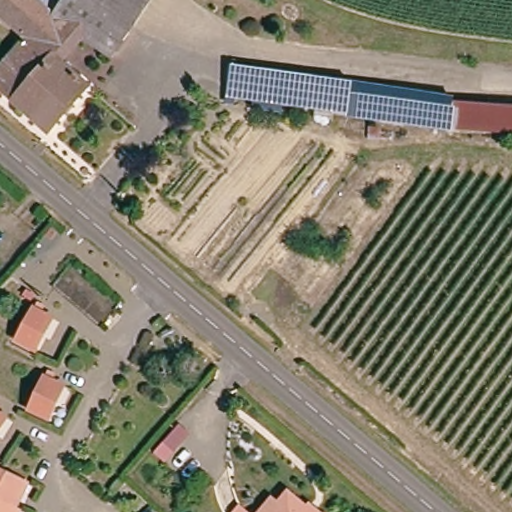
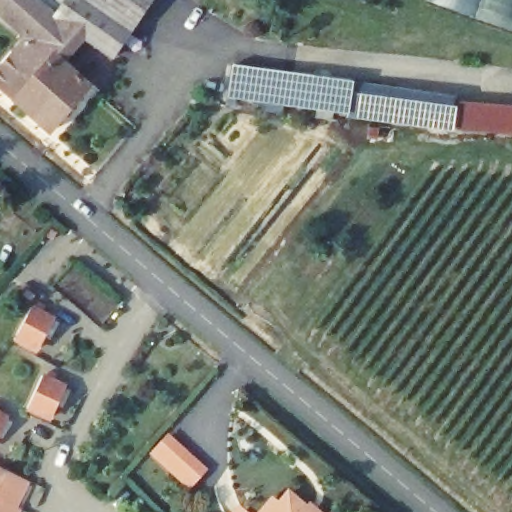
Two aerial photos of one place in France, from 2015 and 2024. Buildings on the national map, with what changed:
unchanged [(74,31),(53,58),(86,83),(50,127),(0,86),(0,71),(28,39),(0,15),(0,1),(0,0),(39,0),(59,15),(71,0),(80,0),(128,36),(110,58),(74,31)]
unchanged [(129,0),(147,14),(128,36),(80,0),(129,0)]
unchanged [(129,0),(165,0),(147,14),(129,0)]
new [(512,0),(512,28),(431,0),(512,0)]
unchanged [(397,104),(394,117),(389,130),(230,111),(233,77),(397,104)]
unchanged [(501,131),(496,148),(418,125),(394,117),(397,104),(430,110),(501,131)]
unchanged [(14,337),(17,333),(34,308),(54,321),(38,343),(34,350),(14,337)]
unchanged [(44,375),(63,383),(47,417),(28,408),(44,375)]
unchanged [(12,423),(0,436),(0,413),(12,423)]
new [(209,470),(189,491),(149,455),(169,433),(209,470)]
unchanged [(14,512),(0,512),(0,471),(27,484),(14,512)]
unchanged [(270,504),(279,512),(263,512),(270,504)]
unchanged [(306,511),(313,504),(322,512),(306,512),(306,511)]

